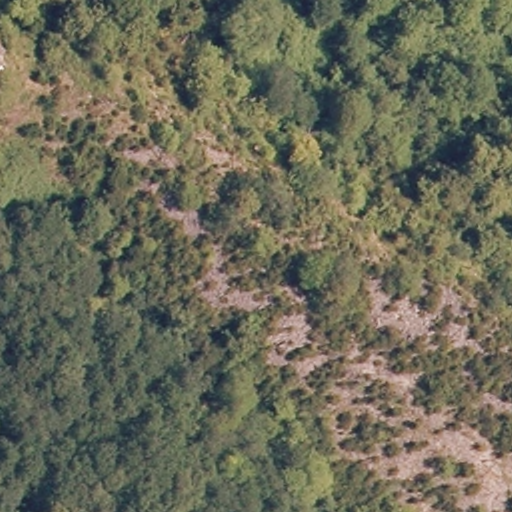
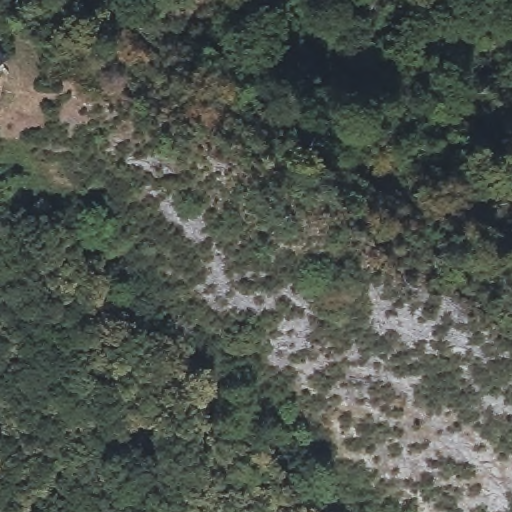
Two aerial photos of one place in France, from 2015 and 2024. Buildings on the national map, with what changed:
unchanged [(0,47),(9,60),(1,66),(0,66),(0,47)]

